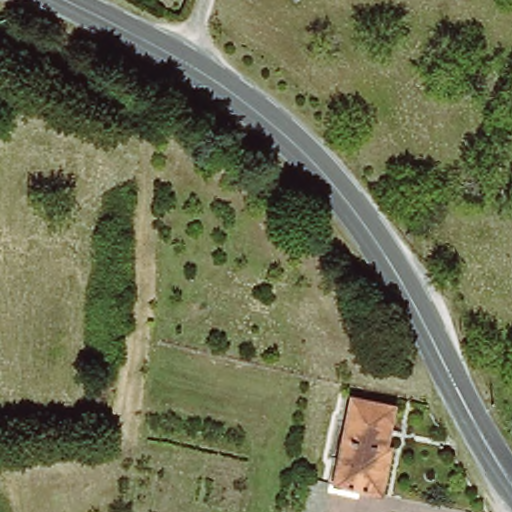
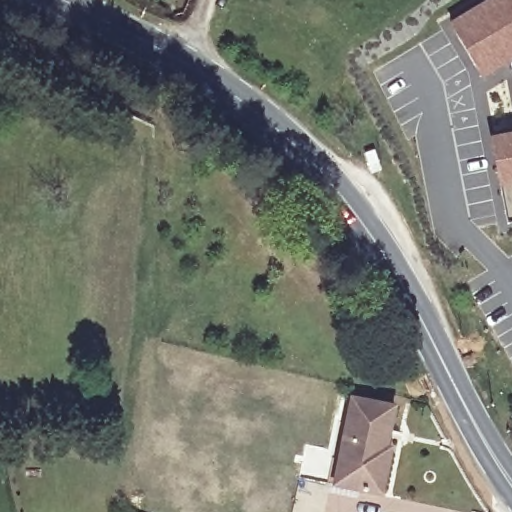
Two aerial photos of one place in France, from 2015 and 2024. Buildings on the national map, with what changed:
new [(512,64),(491,77),(460,24),(499,0),(512,0),(512,64)]
new [(512,136),(512,213),(499,138),(512,136)]
unchanged [(350,394),(396,402),(380,486),(333,477),(347,410),(350,394)]
unchanged [(290,512),(299,472),(322,477),(330,478),(322,512),(290,512)]

